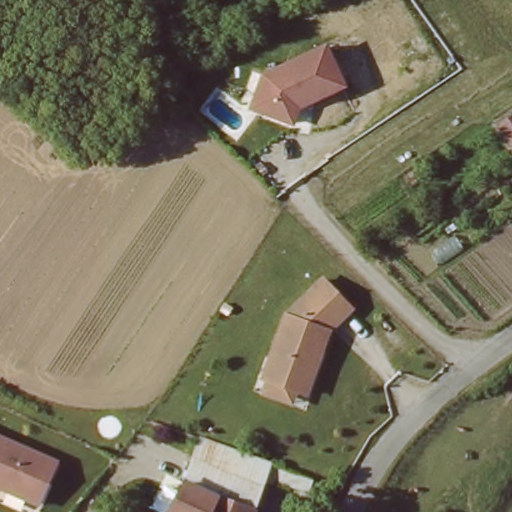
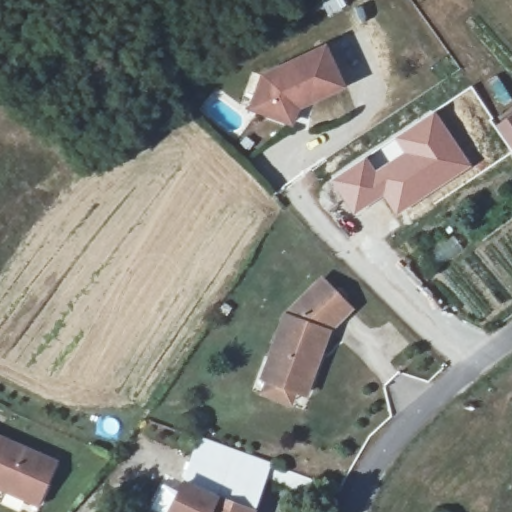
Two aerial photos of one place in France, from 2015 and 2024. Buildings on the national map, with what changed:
unchanged [(256,94),(262,76),(323,47),(342,84),(313,98),(296,106),(290,121),(269,114),(250,109),(256,94)]
new [(366,154),(376,168),(387,161),(378,147),(433,109),(471,165),(395,217),(382,197),(353,217),(328,179),(366,154)]
new [(512,152),(494,126),(512,113),(512,152)]
unchanged [(266,393),(270,381),(265,379),(287,315),(323,279),(352,307),(329,330),(307,394),(297,390),(292,402),(266,393)]
unchanged [(32,496),(0,485),(0,437),(59,457),(48,488),(45,500),(32,496)]
unchanged [(201,441),(271,466),(313,482),(308,495),(266,479),(255,512),(172,512),(186,485),(201,441)]

